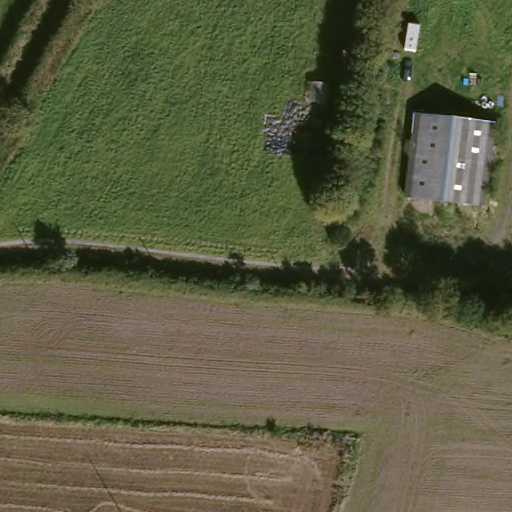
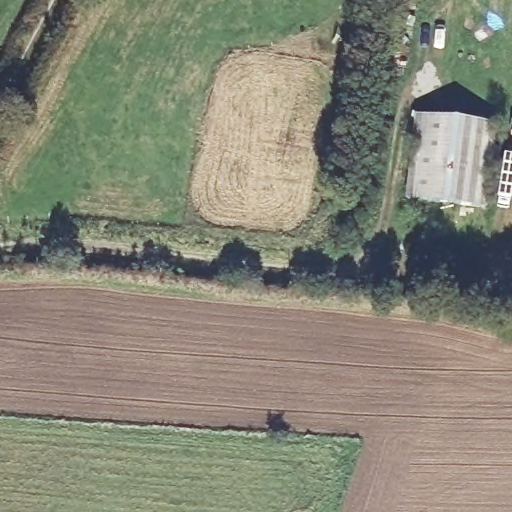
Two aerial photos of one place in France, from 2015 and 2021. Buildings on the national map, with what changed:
unchanged [(494,123),(486,208),(405,197),(413,114),(494,123)]

